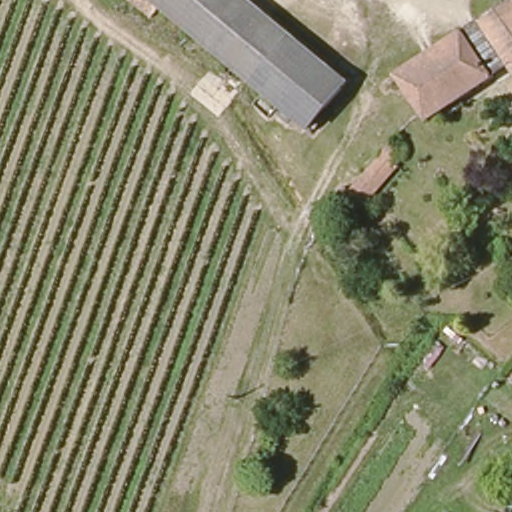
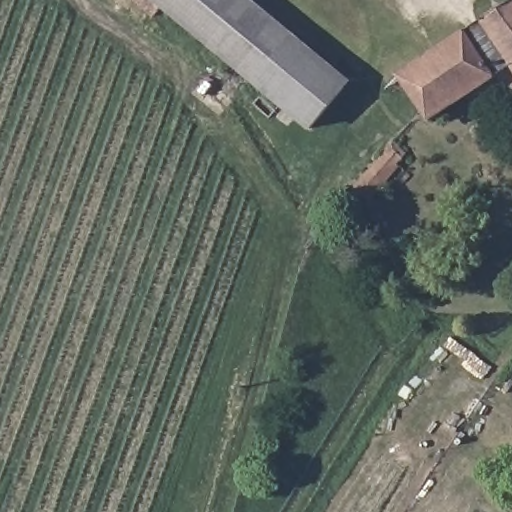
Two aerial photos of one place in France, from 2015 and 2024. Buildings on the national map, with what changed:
unchanged [(253,82),(163,8),(153,20),(134,3),(137,0),(248,0),(291,35),(253,82)]
unchanged [(512,0),(512,55),(485,16),(510,0),(512,0)]
unchanged [(485,16),(512,55),(512,70),(501,76),(468,28),(485,16)]
unchanged [(433,121),(401,75),(468,28),(501,76),(433,121)]
unchanged [(350,83),(311,129),(253,82),(291,35),(350,83)]
unchanged [(409,154),(356,218),(333,199),(345,183),(353,190),(394,141),(409,154)]

